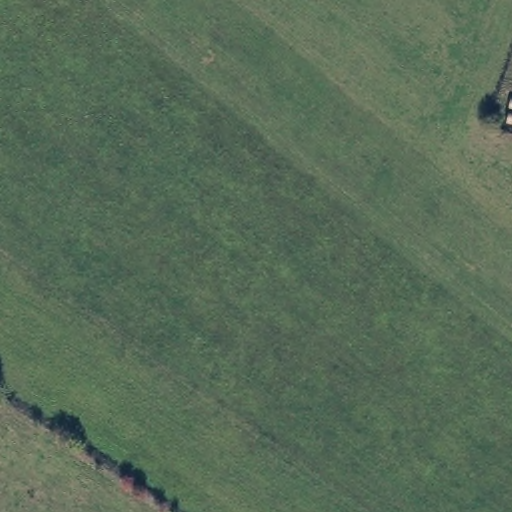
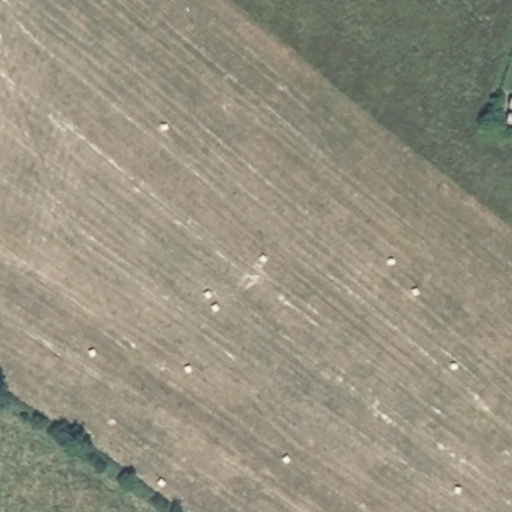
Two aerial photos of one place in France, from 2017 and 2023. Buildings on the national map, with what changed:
[]

